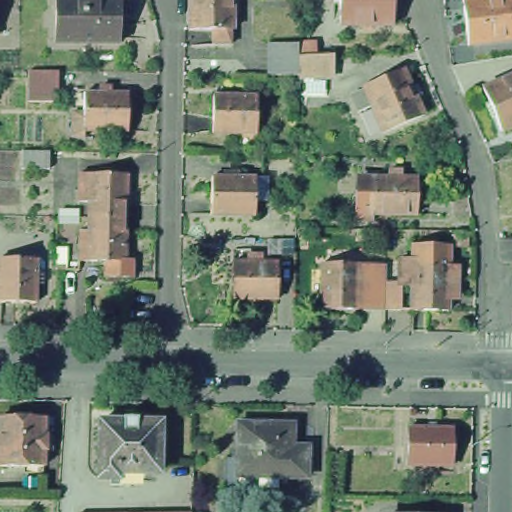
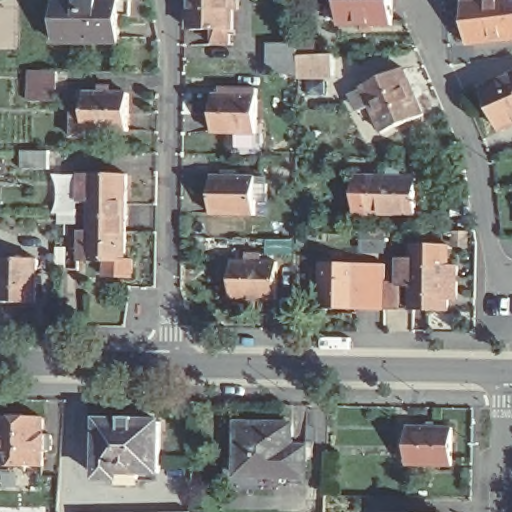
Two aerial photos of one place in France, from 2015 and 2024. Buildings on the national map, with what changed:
unchanged [(110,16),(110,43),(44,42),(44,0),(120,0),(120,16),(110,16)]
unchanged [(210,29),(185,29),(185,27),(185,0),(230,0),(230,29),(228,29),(227,45),(210,45),(210,29)]
unchanged [(382,25),(329,25),(329,0),(383,0),(382,20),(382,25)]
unchanged [(512,0),(512,38),(465,44),(459,0),(512,0)]
unchanged [(324,81),(289,81),(259,80),(260,50),(289,49),(289,61),(324,59),(324,81)]
unchanged [(400,69),(420,115),(377,132),(366,105),(355,110),(349,96),(360,91),(358,87),(400,69)]
unchanged [(30,70),(61,72),(60,101),(30,102),(30,70)]
unchanged [(477,88),(512,73),(512,123),(496,130),(477,88)]
unchanged [(234,146),(234,134),(209,133),(210,95),(254,96),(253,135),(252,147),(234,146)]
unchanged [(122,132),(77,132),(77,98),(123,99),(122,132)]
unchanged [(52,152),(52,171),(23,170),(22,152),(52,152)]
unchanged [(367,219),(368,181),(383,182),(384,174),(396,174),(396,182),(412,182),(411,220),(367,219)]
unchanged [(65,207),(65,179),(75,179),(113,180),(112,223),(75,222),(75,207),(65,207)]
unchanged [(241,221),(197,219),(199,181),(242,182),(241,221)]
unchanged [(355,227),(355,201),(356,181),(367,182),(367,219),(367,226),(355,227)]
unchanged [(65,254),(65,237),(74,237),(75,222),(112,223),(112,265),(92,266),(74,266),(65,266),(65,254)]
unchanged [(380,280),(392,279),(392,257),(404,256),(404,245),(444,244),(452,305),(397,311),(371,312),(310,313),(306,262),(372,266),(380,280)]
unchanged [(269,300),(223,299),(224,262),(237,262),(237,254),(252,254),(252,262),(269,262),(269,300)]
unchanged [(26,309),(0,308),(0,264),(27,265),(26,309)]
unchanged [(120,265),(119,282),(92,281),(92,266),(112,267),(112,265),(120,265)]
unchanged [(40,467),(0,466),(0,417),(40,417),(40,435),(49,435),(49,451),(40,450),(40,467)]
unchanged [(92,477),(95,421),(117,422),(117,417),(133,417),(134,422),(155,422),(154,473),(132,473),(131,478),(93,477),(92,477)]
unchanged [(230,424),(285,425),(284,447),(299,447),(299,455),(299,478),(249,477),(248,480),(237,479),(237,477),(229,477),(230,424)]
unchanged [(449,427),(447,466),(402,465),(403,426),(449,427)]

